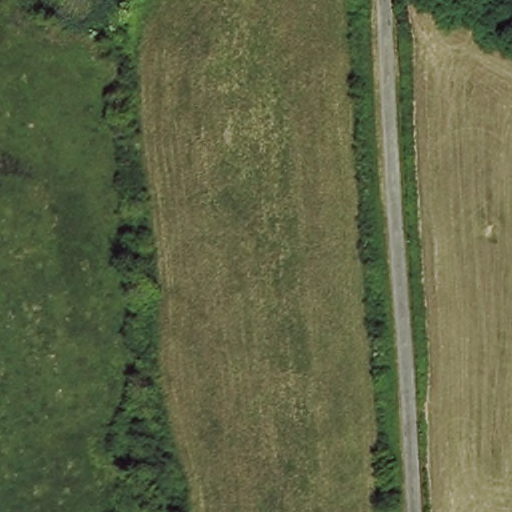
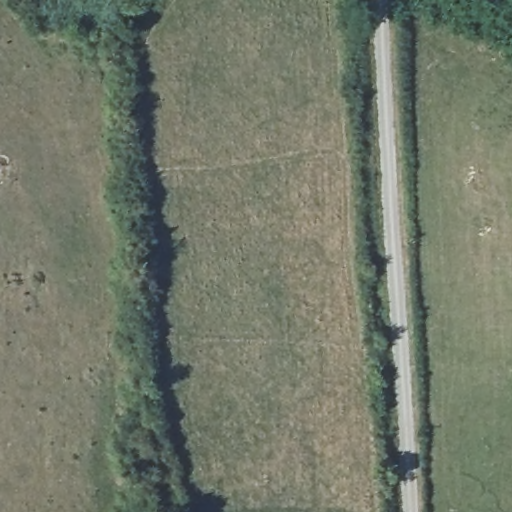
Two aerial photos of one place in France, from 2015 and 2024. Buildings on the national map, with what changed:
[]

